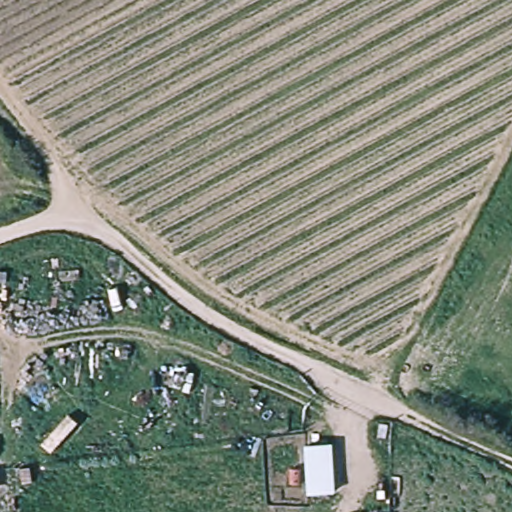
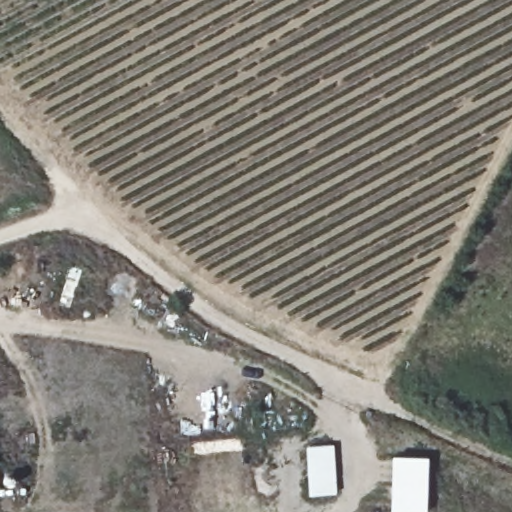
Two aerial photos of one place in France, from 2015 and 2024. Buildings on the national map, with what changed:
unchanged [(334,494),(309,495),(308,484),(291,485),(291,469),(306,469),(306,445),(334,444),(334,494)]
new [(426,456),(424,512),(387,512),(389,455),(426,456)]

